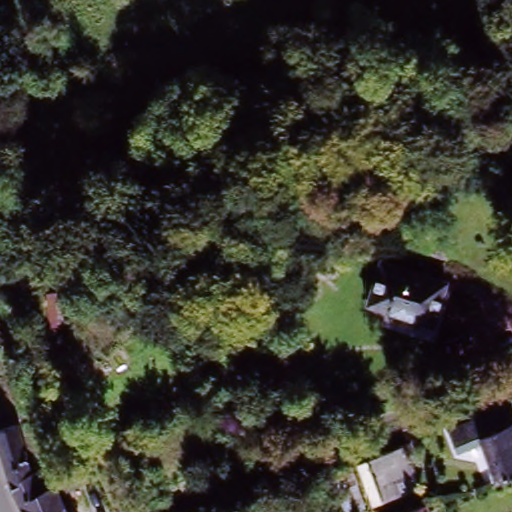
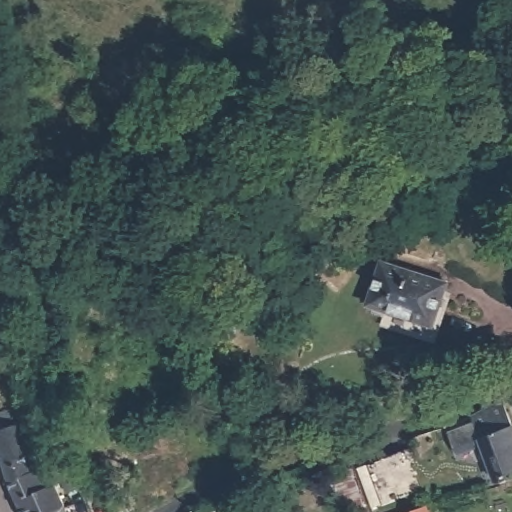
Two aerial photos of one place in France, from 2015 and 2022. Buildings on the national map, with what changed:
unchanged [(438,332),(366,313),(381,264),(451,285),(438,332)]
unchanged [(3,342),(0,342),(0,321),(3,342)]
unchanged [(18,427),(41,484),(56,482),(69,512),(27,512),(0,444),(0,434),(18,427)]
unchanged [(481,444),(512,432),(512,481),(496,486),(481,444)]
unchanged [(341,512),(330,480),(355,471),(369,512),(341,512)]
unchanged [(435,512),(410,512),(432,504),(435,512)]

